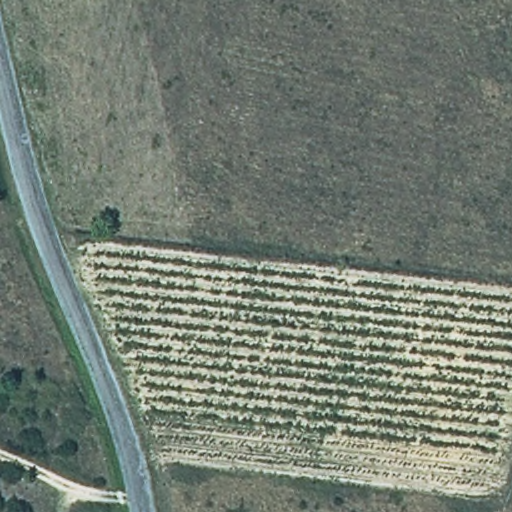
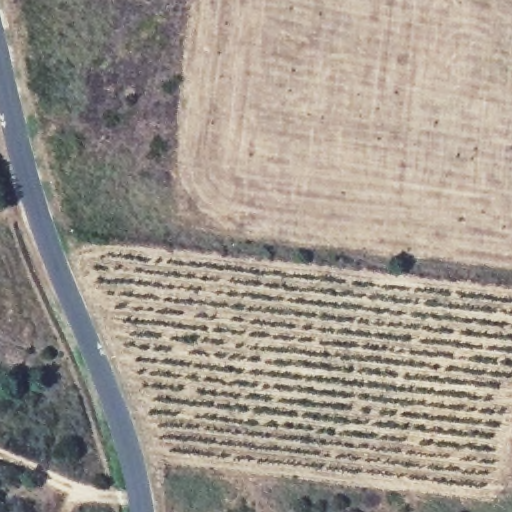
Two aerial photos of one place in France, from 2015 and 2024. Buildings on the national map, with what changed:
[]

